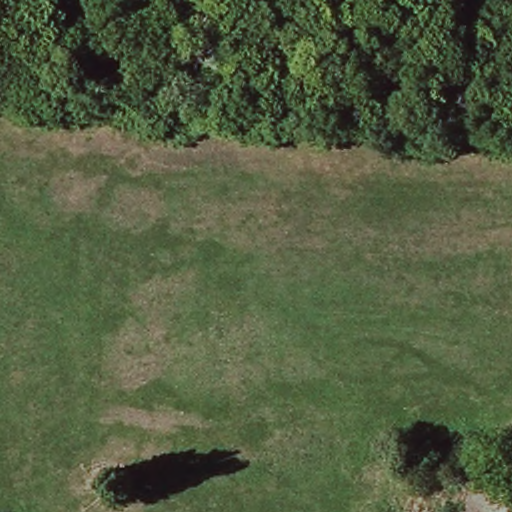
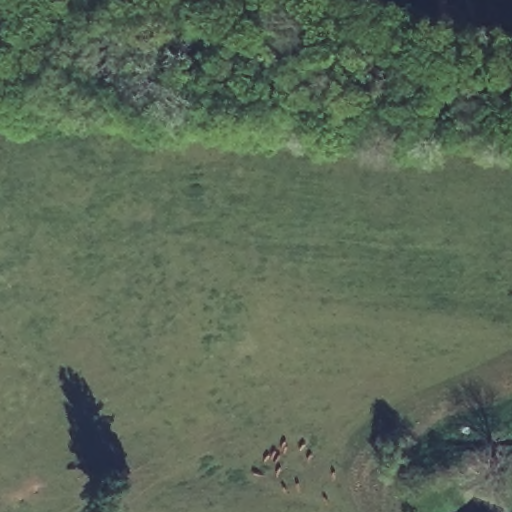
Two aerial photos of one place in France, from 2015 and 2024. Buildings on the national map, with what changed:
unchanged [(434,486),(400,488),(400,476),(434,474),(434,486)]

